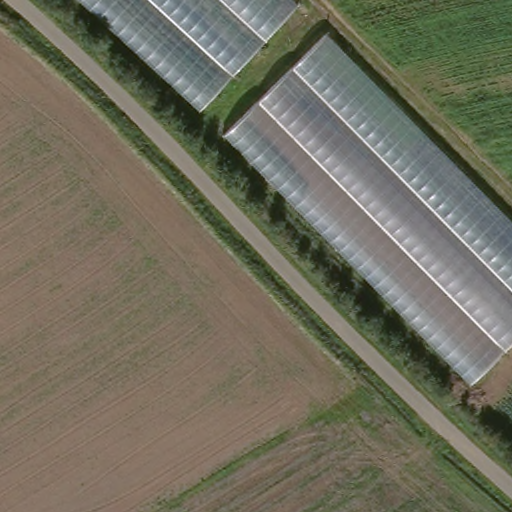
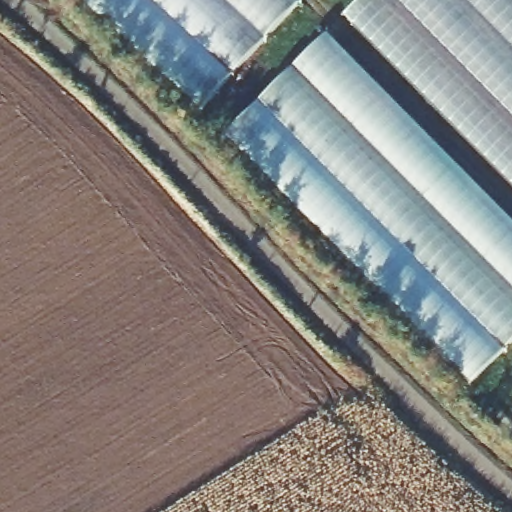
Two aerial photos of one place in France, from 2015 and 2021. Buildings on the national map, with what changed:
unchanged [(198,111),(77,0),(289,0),(296,6),(198,111)]
new [(512,184),(346,17),(363,0),(512,0),(512,184)]
unchanged [(222,138),(325,36),(512,223),(512,343),(471,385),(222,138)]

